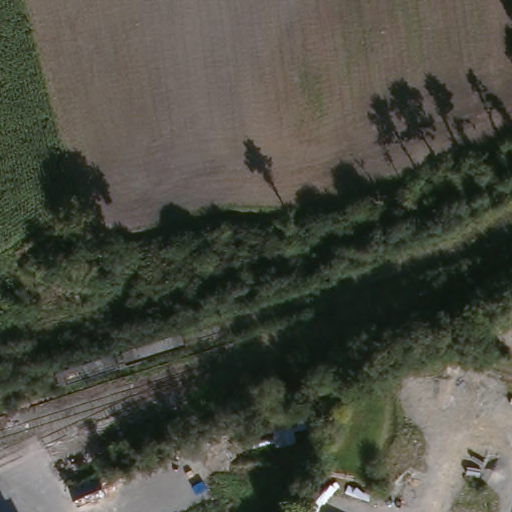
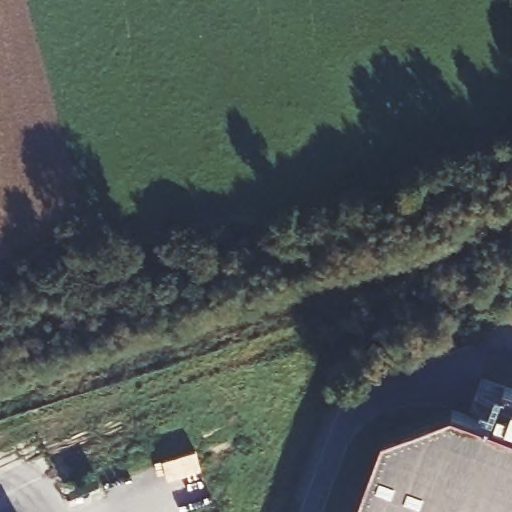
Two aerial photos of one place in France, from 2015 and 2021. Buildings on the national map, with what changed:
new [(384,434),(451,408),(475,417),(481,403),(490,407),(497,388),(500,391),(505,385),(512,387),(512,512),(355,512),(384,434)]

